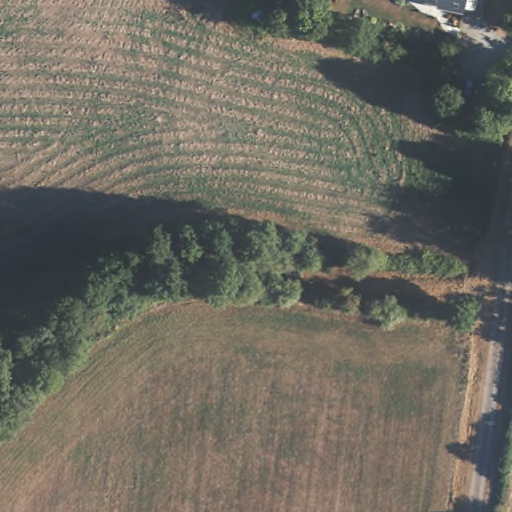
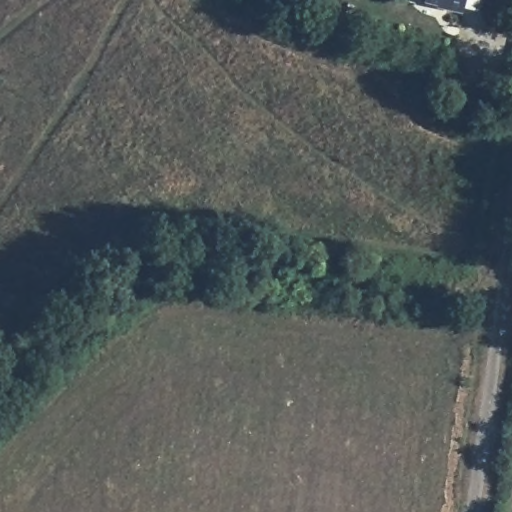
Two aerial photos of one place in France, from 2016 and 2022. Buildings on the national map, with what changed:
unchanged [(476,9),(463,7),(462,8),(461,12),(460,12),(445,9),(446,6),(432,3),(423,1),(423,0),(478,0),(476,9)]

